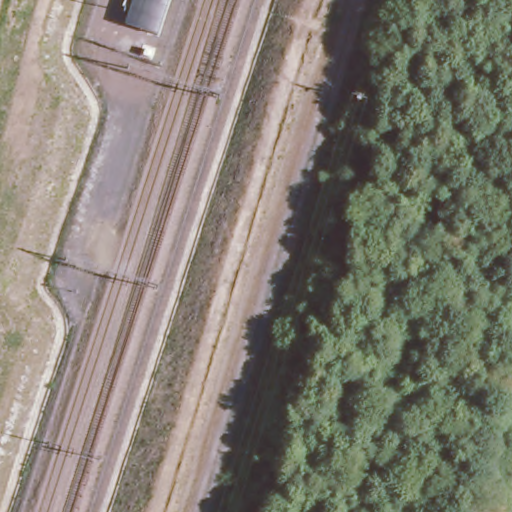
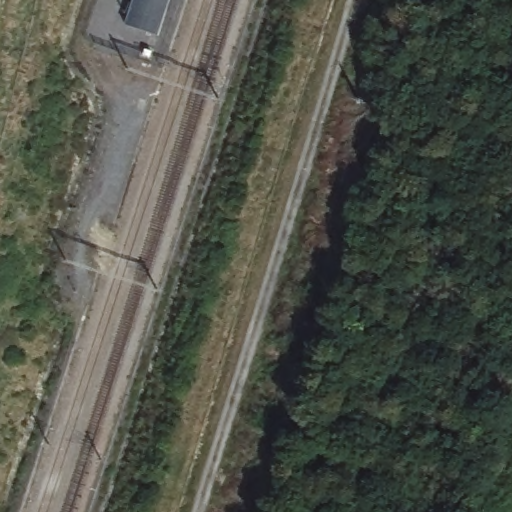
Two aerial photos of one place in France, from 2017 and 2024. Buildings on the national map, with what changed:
unchanged [(155,35),(121,22),(128,0),(167,0),(155,35)]

